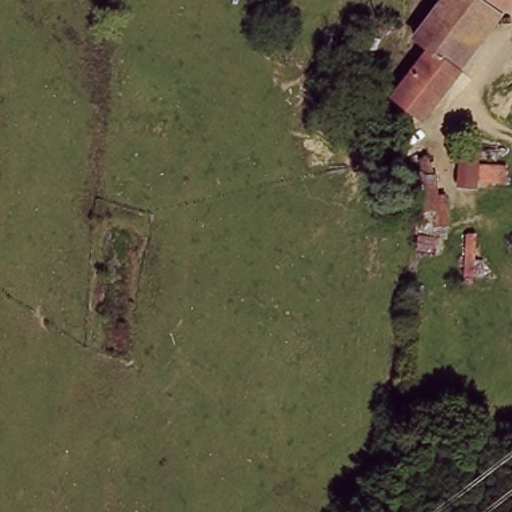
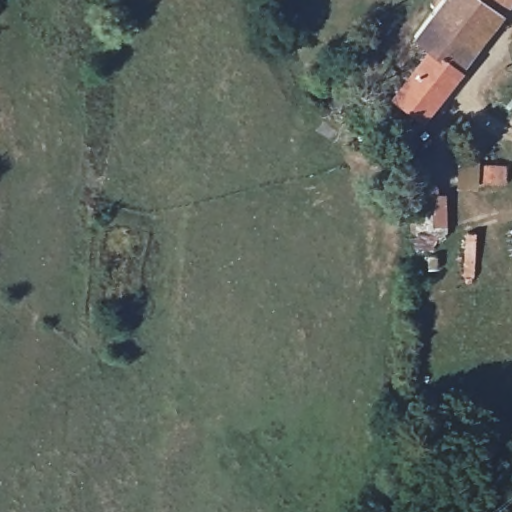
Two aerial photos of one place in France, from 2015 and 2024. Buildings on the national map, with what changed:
unchanged [(419,48),(412,38),(444,0),(512,0),(512,8),(497,27),(455,76),(419,48)]
unchanged [(455,76),(422,123),(384,92),(419,48),(455,76)]
unchanged [(419,150),(427,149),(430,172),(419,173),(419,150)]
unchanged [(473,163),(502,162),(504,183),(473,181),(473,163)]
unchanged [(466,227),(474,226),(474,280),(464,278),(466,227)]

